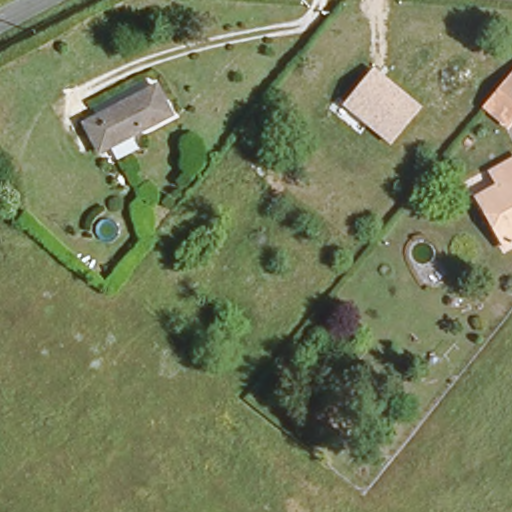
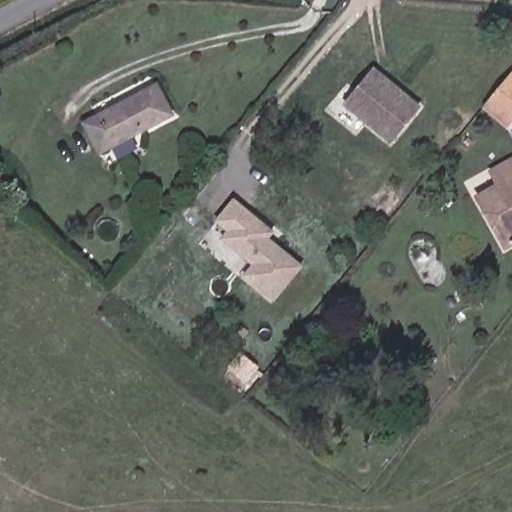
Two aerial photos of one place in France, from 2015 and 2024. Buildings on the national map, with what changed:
unchanged [(392,145),(346,105),(376,69),(422,107),(392,145)]
unchanged [(510,124),(484,104),(512,70),(512,122),(510,124)]
unchanged [(97,151),(82,122),(153,85),(169,114),(166,115),(97,151)]
unchanged [(507,250),(480,202),(500,190),(491,177),(512,165),(512,247),(507,250)]
new [(234,201),(273,232),(268,239),(302,266),(275,300),(246,277),(254,265),(223,240),(229,232),(217,222),(234,201)]

